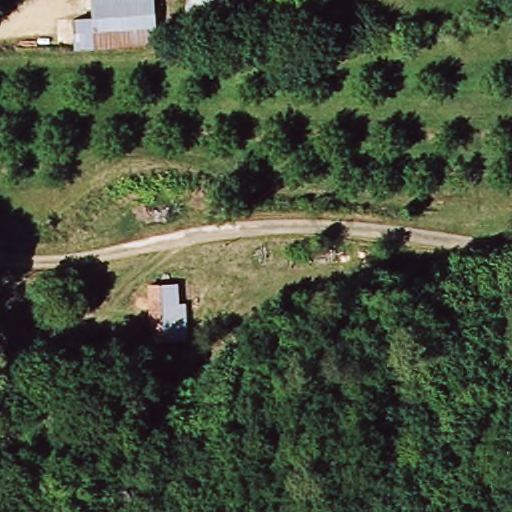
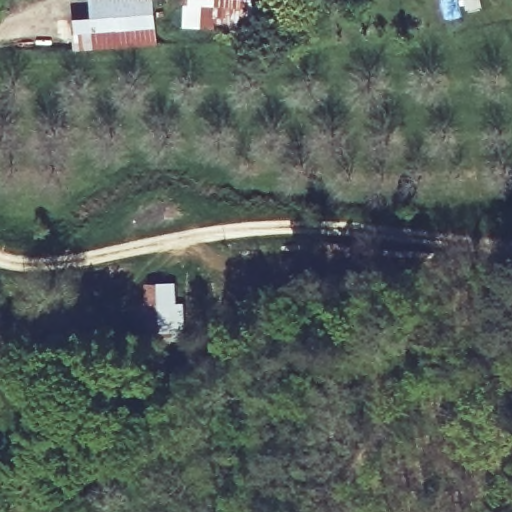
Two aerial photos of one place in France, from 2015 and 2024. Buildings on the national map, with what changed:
unchanged [(157,45),(74,50),(72,21),(92,18),(92,0),(154,0),(157,45)]
unchanged [(263,3),(256,37),(177,28),(181,0),(229,0),(263,3)]
unchanged [(146,291),(170,289),(172,306),(183,305),(185,339),(151,341),(146,291)]

